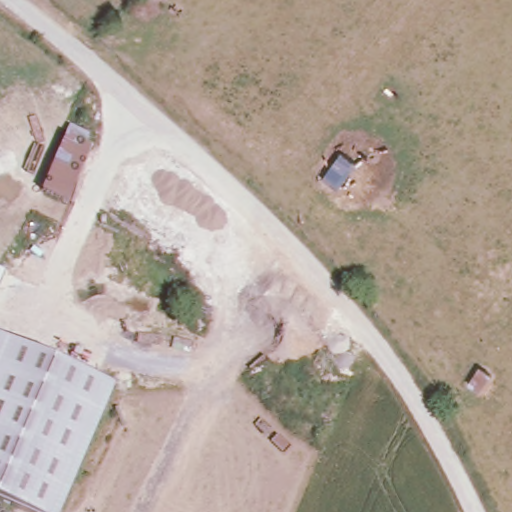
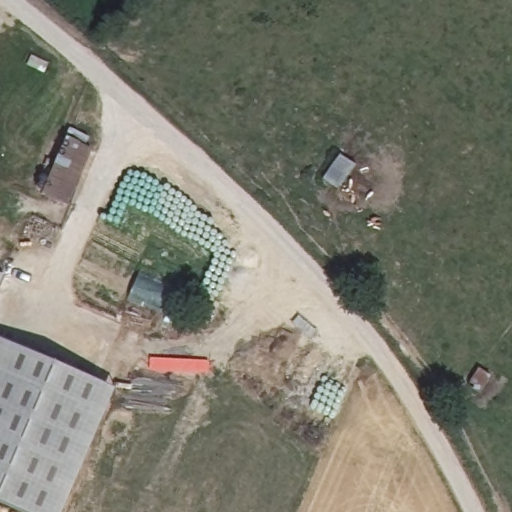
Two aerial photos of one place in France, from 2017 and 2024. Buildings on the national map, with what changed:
unchanged [(68,132),(71,127),(89,134),(85,144),(94,147),(70,203),(43,192),(68,132)]
unchanged [(334,150),(357,160),(343,181),(320,172),(334,150)]
unchanged [(0,286),(0,274),(4,275),(0,286)]
unchanged [(38,512),(34,512),(0,497),(0,334),(97,375),(38,512)]
unchanged [(477,362),(489,366),(477,390),(467,382),(477,362)]

